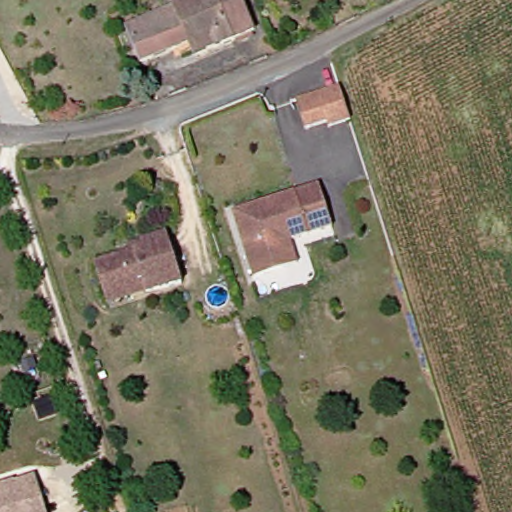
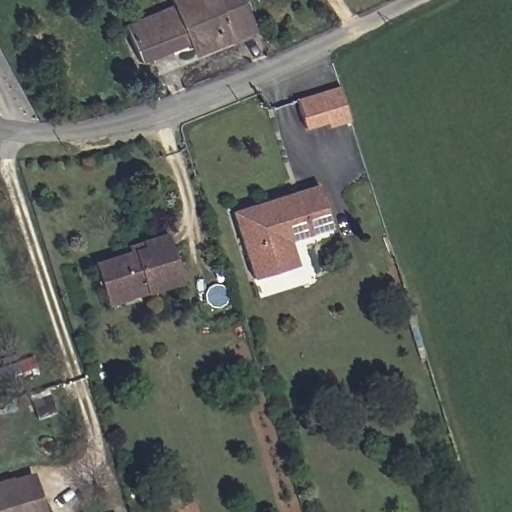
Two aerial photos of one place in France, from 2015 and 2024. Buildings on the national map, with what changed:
unchanged [(172,0),(235,0),(250,36),(191,60),(186,48),(135,69),(120,33),(170,12),(166,2),(172,0)]
unchanged [(340,86),(346,104),(351,120),(330,126),(328,122),(306,129),(297,100),(340,86)]
unchanged [(280,274),(249,284),(228,217),(314,190),(327,233),(286,246),(293,270),(280,274)]
unchanged [(105,296),(96,262),(130,251),(128,244),(142,240),(167,233),(182,283),(147,294),(146,292),(108,304),(105,296)]
unchanged [(14,482),(33,476),(44,512),(0,512),(0,486),(14,482)]

